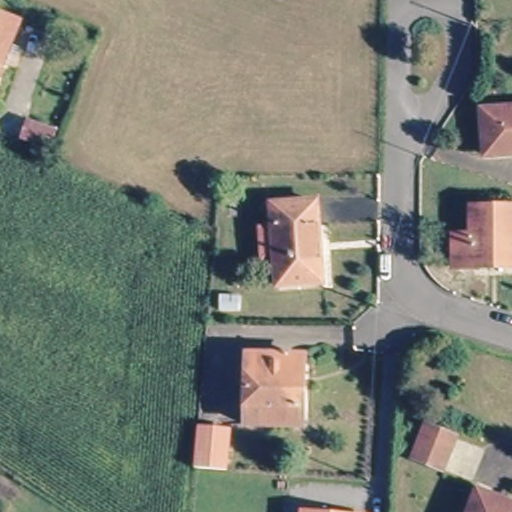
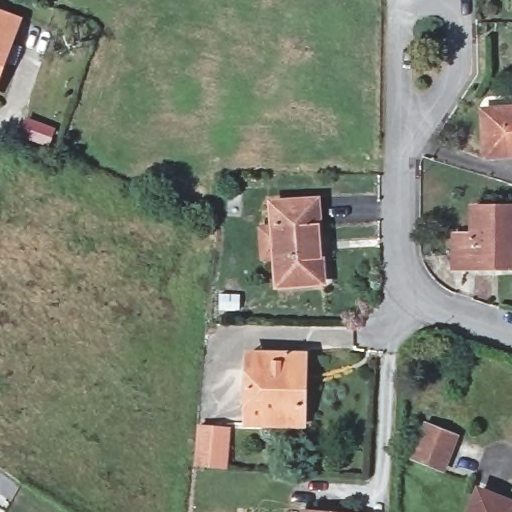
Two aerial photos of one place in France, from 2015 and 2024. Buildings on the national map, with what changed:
unchanged [(23,19),(0,78),(0,10),(23,19)]
unchanged [(512,154),(486,155),(483,111),(512,110),(512,154)]
unchanged [(47,150),(20,140),(23,132),(27,123),(53,133),(50,142),(47,150)]
unchanged [(274,276),(274,198),(319,195),(319,274),(274,276)]
unchanged [(455,238),(474,237),(474,211),(512,211),(512,270),(476,270),(456,270),(455,238)]
unchanged [(307,430),(247,427),(250,358),(310,360),(307,430)]
unchanged [(448,471),(418,460),(431,428),(460,440),(460,442),(448,471)]
unchanged [(197,430),(230,433),(226,473),(194,471),(197,430)]
unchanged [(512,507),(512,512),(478,512),(485,496),(512,507)]

